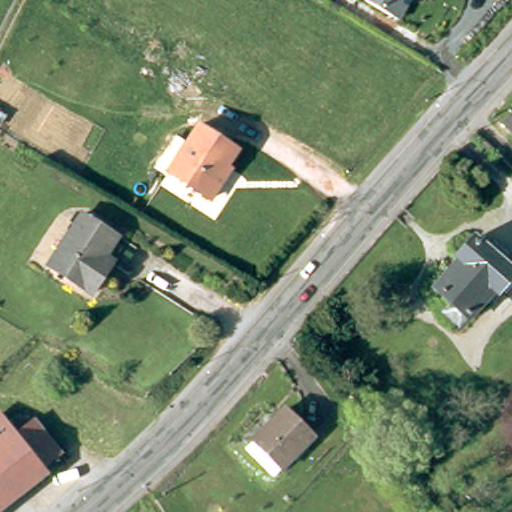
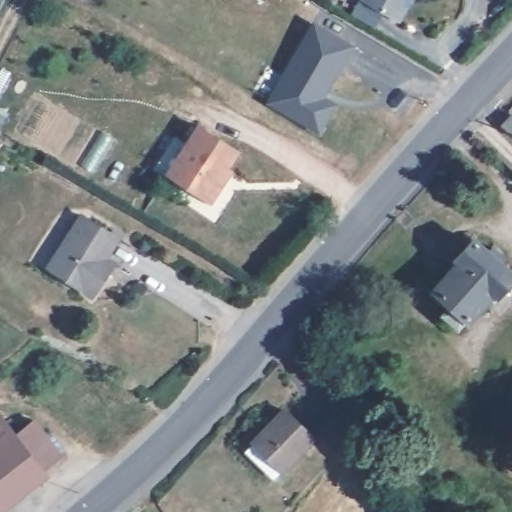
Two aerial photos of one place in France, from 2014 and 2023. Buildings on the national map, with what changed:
unchanged [(401,24),(396,21),(362,1),(363,0),(408,0),(415,0),(401,24)]
new [(354,45),(325,96),(338,105),(319,135),(265,104),(312,21),(354,45)]
unchanged [(503,125),(512,115),(512,135),(503,125)]
unchanged [(220,181),(208,200),(166,172),(195,126),(233,150),(223,165),(229,168),(220,181)]
unchanged [(94,264),(101,270),(89,290),(46,261),(78,211),(113,235),(94,264)]
unchanged [(438,310),(447,300),(431,283),(453,258),(452,255),(469,235),(482,247),(488,242),(499,253),(496,258),(509,271),(493,287),(492,286),(489,288),(494,294),(489,299),(484,294),(464,315),(462,314),(453,323),(438,310)]
unchanged [(253,441),(261,433),(259,431),(289,400),(318,428),(286,459),(279,467),(253,441)]
unchanged [(58,450),(41,464),(44,468),(0,503),(0,412),(12,426),(28,414),(58,450)]

